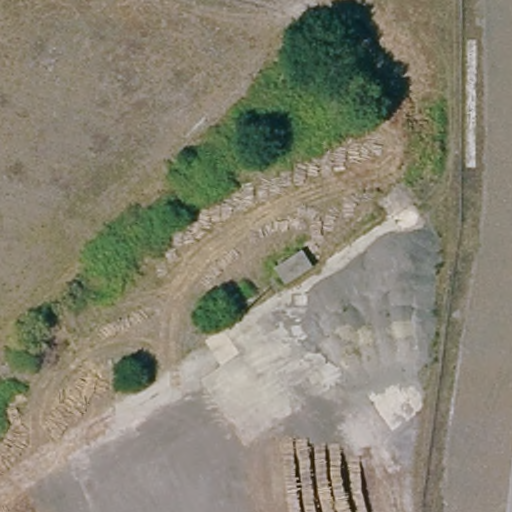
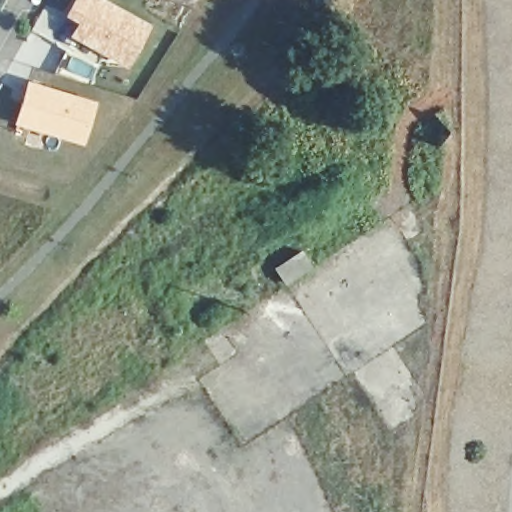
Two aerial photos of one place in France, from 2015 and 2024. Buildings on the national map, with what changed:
new [(71,0),(107,0),(151,24),(127,66),(68,36),(75,22),(62,15),(71,0)]
new [(27,79),(97,102),(83,145),(13,123),(27,79)]

